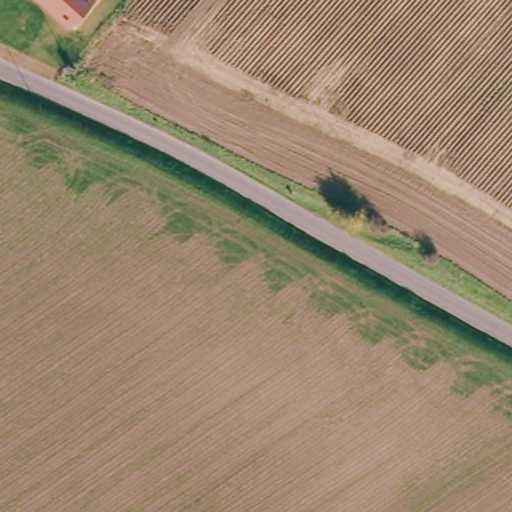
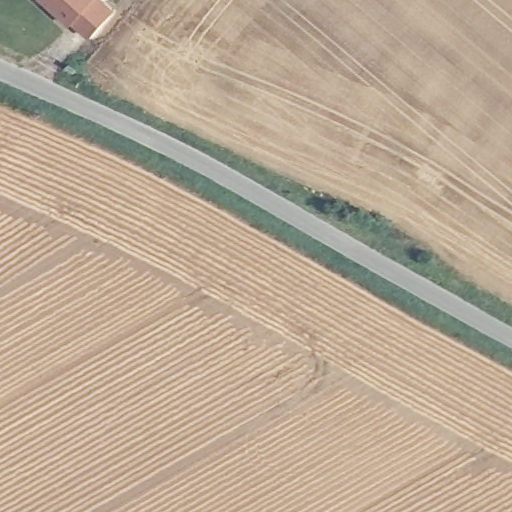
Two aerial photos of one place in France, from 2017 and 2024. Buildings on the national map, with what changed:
unchanged [(41,0),(94,0),(70,27),(41,0)]

